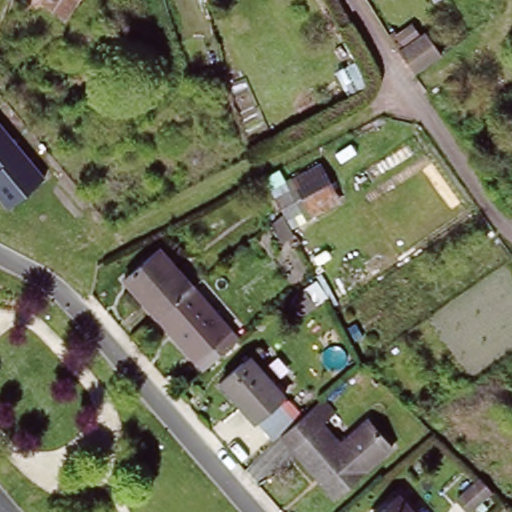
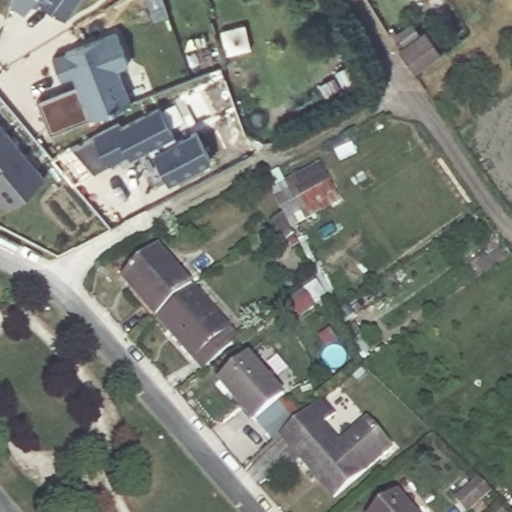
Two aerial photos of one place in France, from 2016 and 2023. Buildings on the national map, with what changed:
unchanged [(39,5),(36,1),(27,12),(14,1),(14,0),(45,0),(39,5)]
unchanged [(69,17),(45,0),(82,0),(69,17)]
unchanged [(436,6),(433,0),(447,0),(436,6)]
new [(37,99),(76,84),(72,74),(61,78),(52,55),(116,32),(130,64),(117,68),(130,101),(50,133),(37,99)]
new [(72,147),(94,137),(92,133),(117,120),(120,125),(158,106),(177,139),(195,130),(212,160),(170,182),(153,151),(151,146),(130,157),(127,153),(93,171),(72,147)]
unchanged [(46,178),(10,208),(0,198),(0,123),(46,178)]
new [(280,168),(285,179),(319,162),(341,200),(291,229),(293,233),(281,242),(270,223),(283,214),(265,176),(280,168)]
demolished [(343,207),(311,222),(289,178),(321,165),(343,207)]
unchanged [(156,314),(125,277),(159,247),(192,285),(156,314)]
unchanged [(312,274),(313,276),(298,287),(288,266),(303,254),(312,274)]
unchanged [(236,337),(202,367),(156,314),(192,285),(236,337)]
unchanged [(218,383),(248,357),(283,397),(253,423),(218,383)]
unchanged [(365,461),(375,471),(334,506),(280,443),(310,418),(333,444),(360,421),(381,446),(365,461)]
unchanged [(418,512),(384,512),(403,496),(418,512)]

